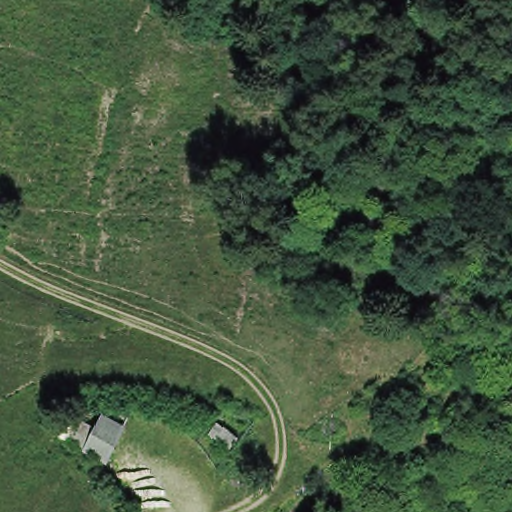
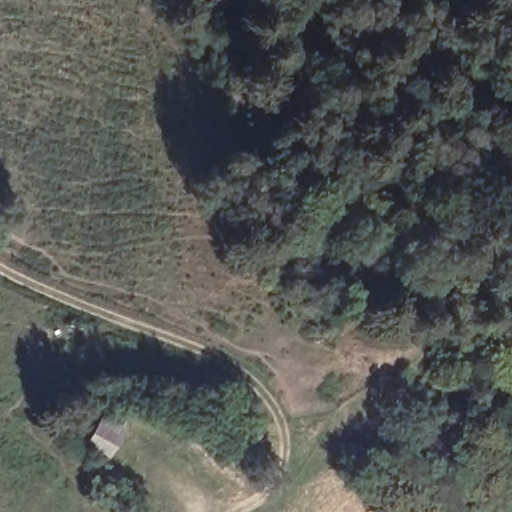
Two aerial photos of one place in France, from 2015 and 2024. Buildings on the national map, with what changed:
unchanged [(109,466),(68,446),(79,418),(95,424),(104,413),(125,423),(109,466)]
unchanged [(216,423),(223,428),(225,426),(240,439),(230,451),(208,435),(216,423)]

